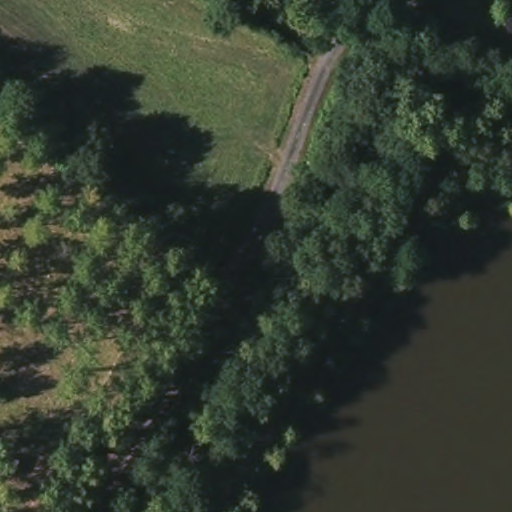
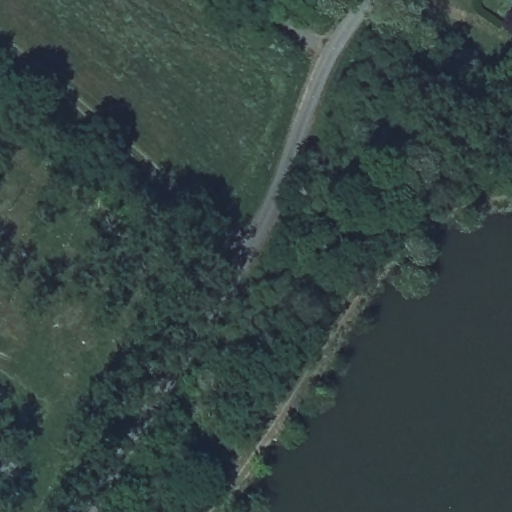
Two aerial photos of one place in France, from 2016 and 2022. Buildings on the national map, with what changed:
[]

